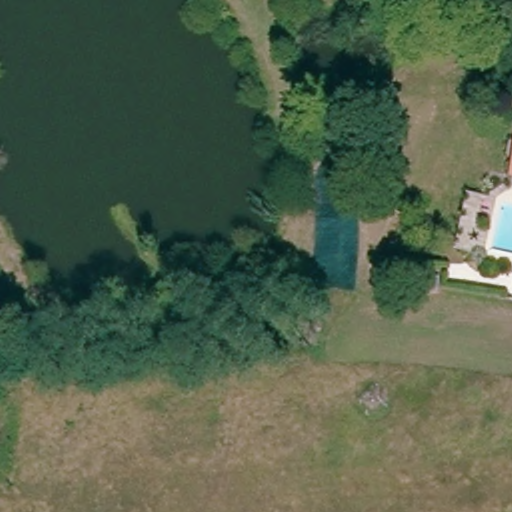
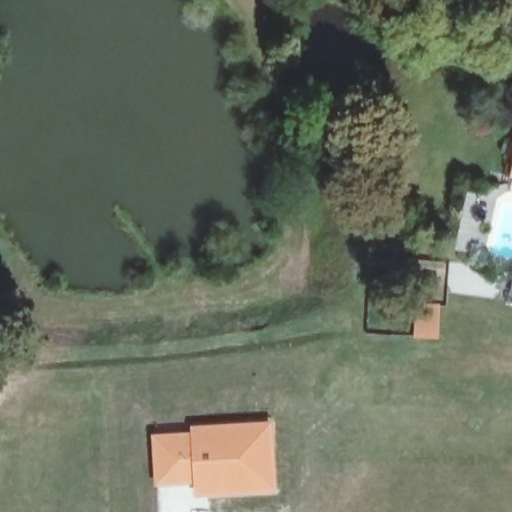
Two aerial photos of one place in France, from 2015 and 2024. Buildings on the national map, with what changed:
new [(272,421),(276,493),(192,498),(192,486),(189,431),(189,424),(272,421)]
new [(189,431),(192,486),(153,488),(150,433),(189,431)]

